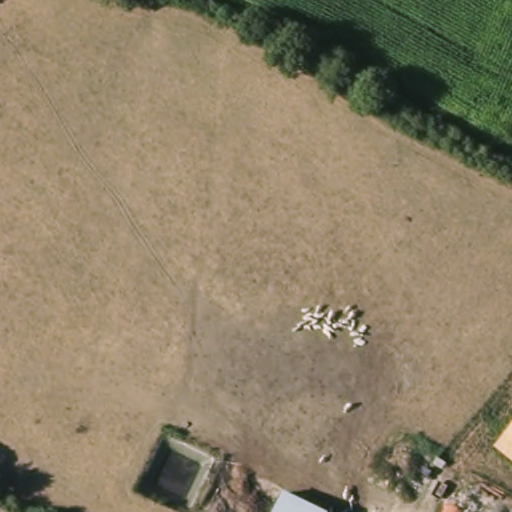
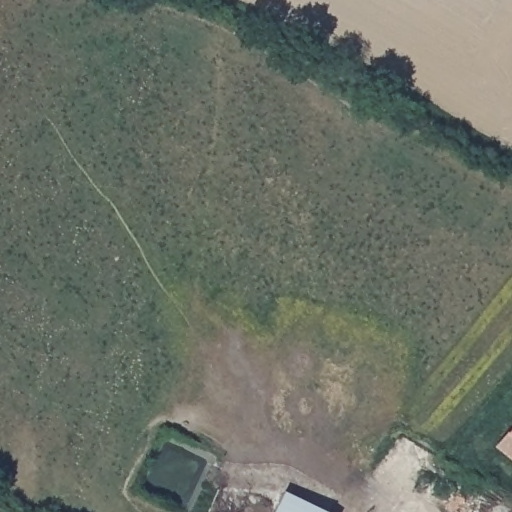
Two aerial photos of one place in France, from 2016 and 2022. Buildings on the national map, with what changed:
unchanged [(512,439),(512,456),(504,450),(512,439)]
unchanged [(316,512),(290,512),(295,502),(316,512)]

